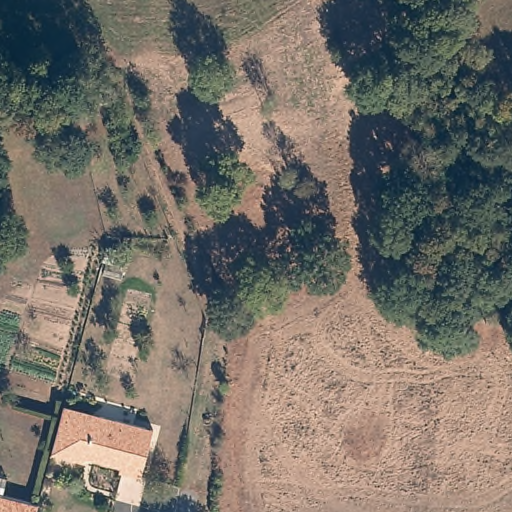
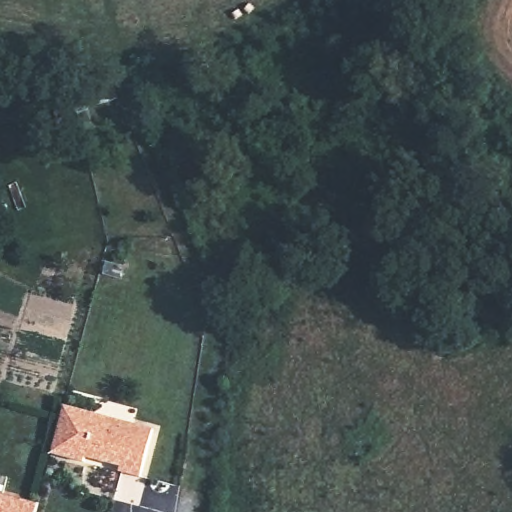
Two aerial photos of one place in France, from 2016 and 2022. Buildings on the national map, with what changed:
unchanged [(150,431),(138,478),(116,473),(117,468),(82,459),(81,463),(48,455),(59,414),(89,421),(96,417),(150,431)]
unchanged [(33,508),(32,512),(0,512),(0,491),(35,500),(33,508)]

